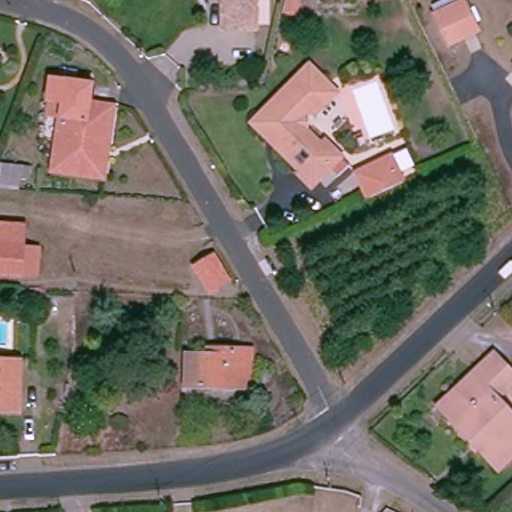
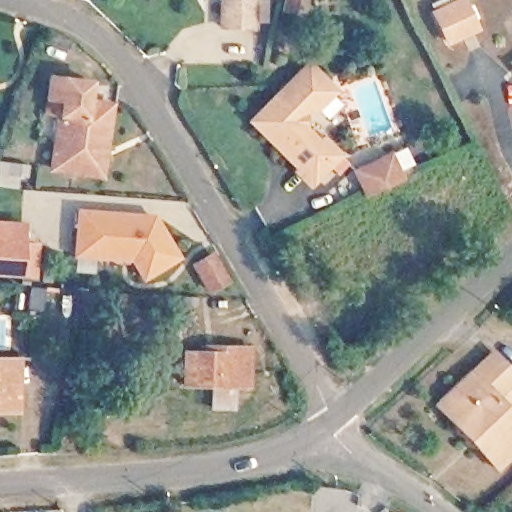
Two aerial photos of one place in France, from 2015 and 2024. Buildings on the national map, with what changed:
unchanged [(261,28),(226,28),(226,0),(261,0),(261,28)]
unchanged [(465,0),(466,0),(476,30),(446,39),(435,10),(465,0)]
unchanged [(309,66),(330,84),(336,93),(318,110),(307,107),(303,112),(308,128),(321,141),(326,138),(340,154),(314,179),(255,117),(280,93),(309,66)]
unchanged [(109,158),(106,178),(56,174),(65,101),(48,100),(49,77),(90,81),(89,104),(106,105),(115,106),(109,158)]
unchanged [(393,154),(407,183),(365,202),(353,174),(393,154)]
new [(155,214),(183,258),(142,283),(130,261),(72,258),(76,209),(155,214)]
unchanged [(40,280),(0,277),(0,228),(26,231),(25,250),(41,251),(40,280)]
unchanged [(209,259),(225,286),(208,296),(193,269),(209,259)]
unchanged [(251,386),(189,385),(190,359),(209,359),(209,349),(221,350),(252,351),(251,386)]
unchanged [(512,368),(512,382),(498,395),(512,410),(512,452),(496,468),(480,452),(485,447),(441,401),(495,350),(512,368)]
unchanged [(14,360),(14,405),(0,405),(0,360),(14,360)]

